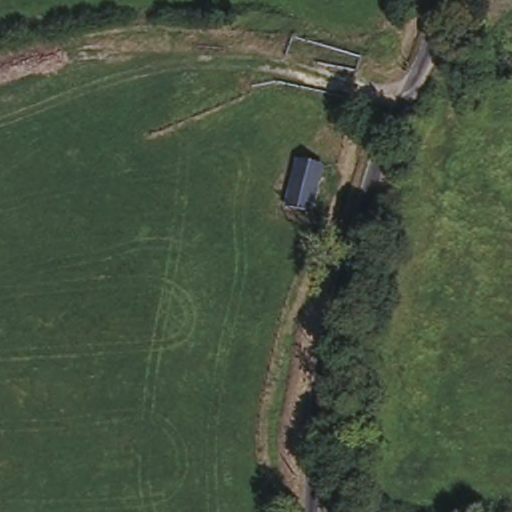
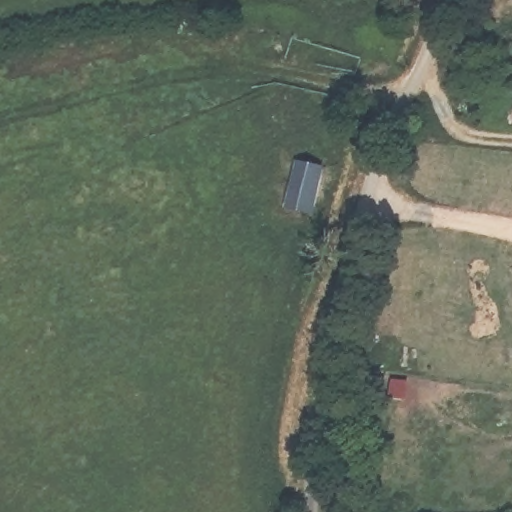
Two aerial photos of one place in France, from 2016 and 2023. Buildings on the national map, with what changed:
unchanged [(300,164),(325,174),(307,222),(281,212),(300,164)]

